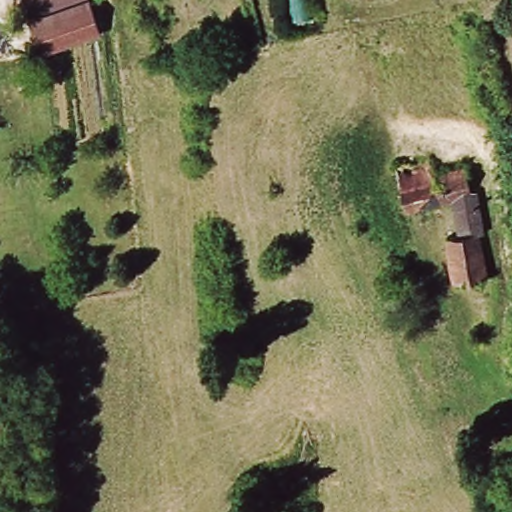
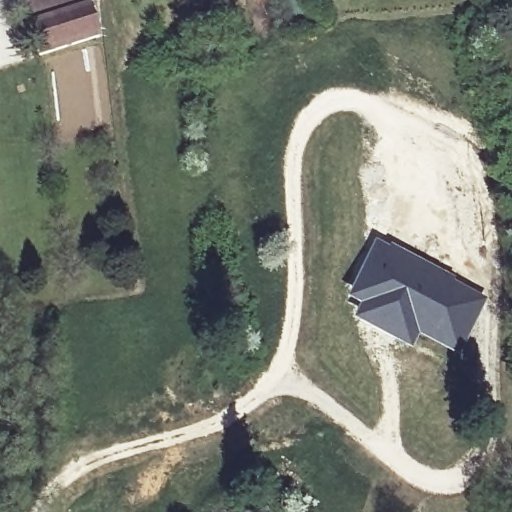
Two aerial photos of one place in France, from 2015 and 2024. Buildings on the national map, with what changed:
new [(88,0),(98,36),(40,55),(28,20),(88,0)]
unchanged [(402,168),(435,162),(438,179),(473,171),(482,205),(486,220),(468,225),(463,202),(409,210),(402,168)]
unchanged [(477,232),(484,275),(454,280),(447,237),(477,232)]
new [(373,240),(399,251),(439,271),(486,300),(456,357),(417,339),(409,352),(349,323),(355,310),(343,303),(373,240)]

